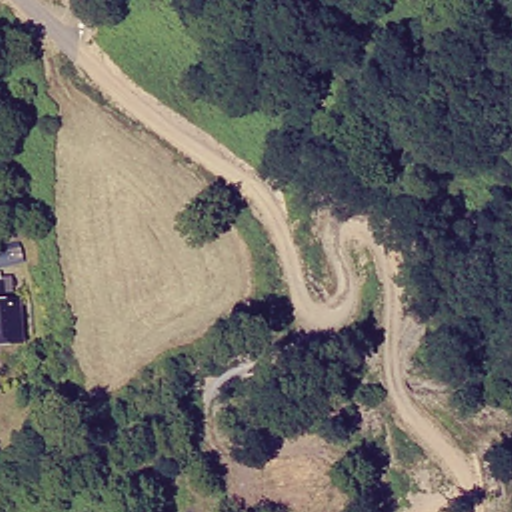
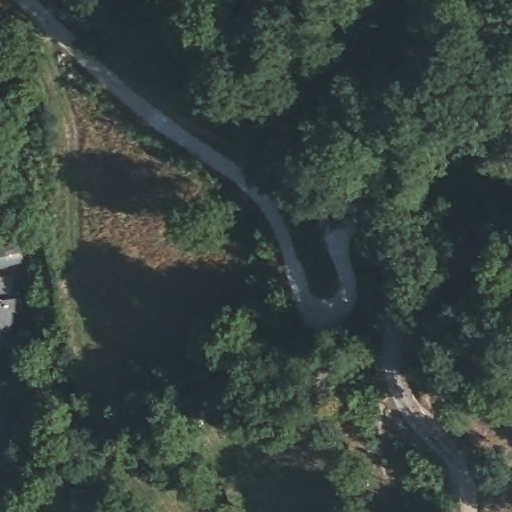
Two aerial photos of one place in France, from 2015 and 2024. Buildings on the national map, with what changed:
unchanged [(0,267),(0,252),(9,251),(11,265),(0,267)]
unchanged [(0,346),(0,291),(1,291),(10,344),(0,346)]

